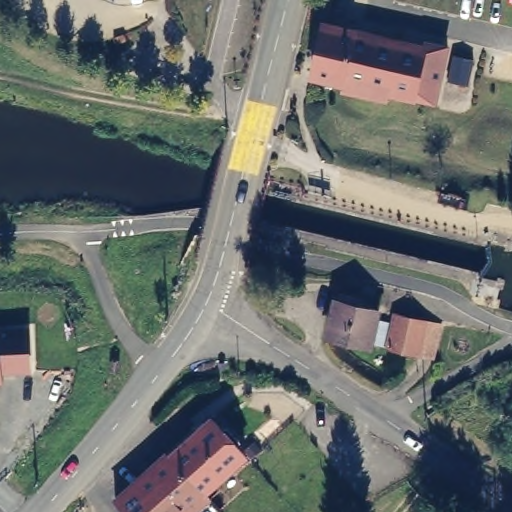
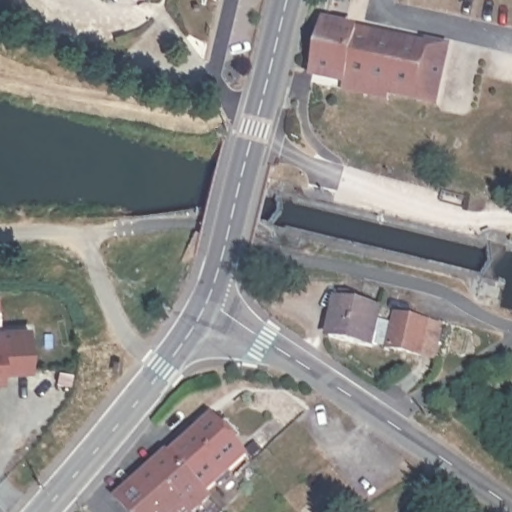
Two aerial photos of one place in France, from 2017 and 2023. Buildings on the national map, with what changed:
unchanged [(344,17),(341,29),(427,50),(415,99),(392,94),(390,101),(345,90),(345,82),(317,75),(330,14),(344,17)]
unchanged [(452,55),(440,104),(415,99),(427,50),(452,55)]
unchanged [(353,301),(352,310),(374,315),(367,350),(325,340),(332,306),(335,307),(336,298),(353,301)]
unchanged [(438,333),(432,364),(387,352),(393,322),(438,333)]
unchanged [(30,327),(32,371),(3,373),(3,382),(0,382),(0,327),(30,327)]
unchanged [(216,512),(122,512),(110,498),(209,417),(240,453),(198,488),(204,495),(217,511),(216,512)]

